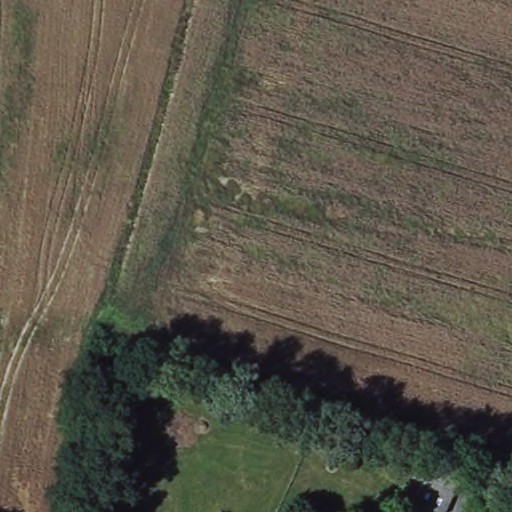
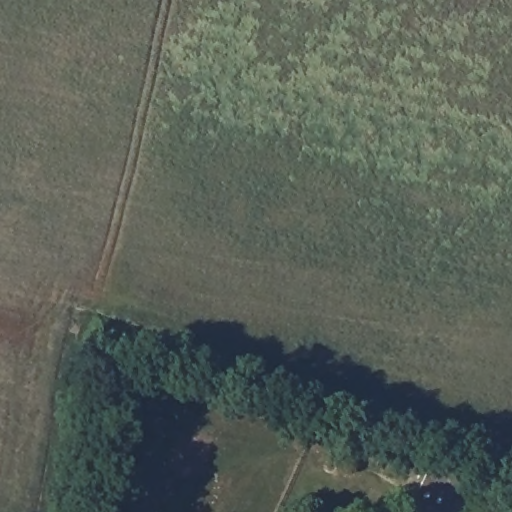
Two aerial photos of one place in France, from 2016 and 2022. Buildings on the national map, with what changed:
unchanged [(438,512),(414,501),(427,473),(456,487),(465,491),(456,512),(438,512)]

